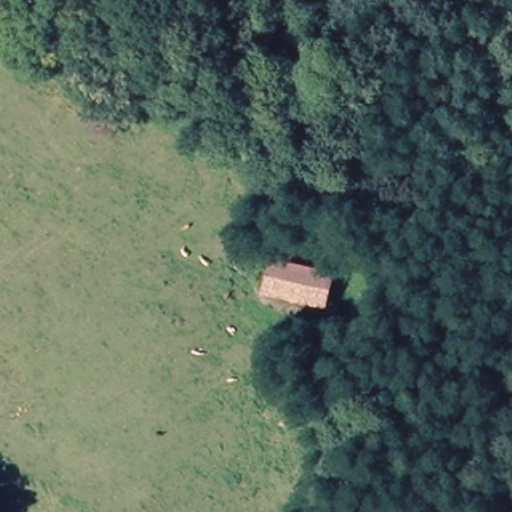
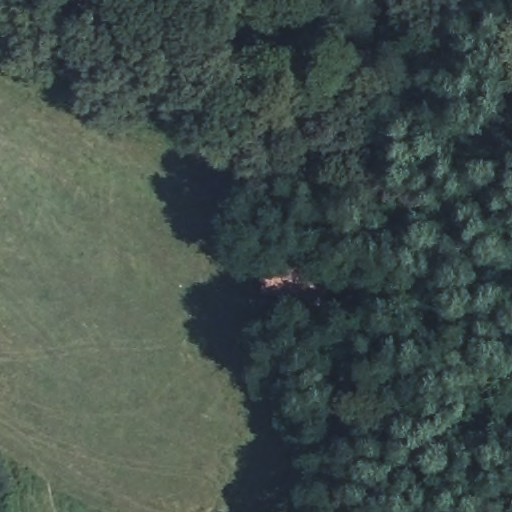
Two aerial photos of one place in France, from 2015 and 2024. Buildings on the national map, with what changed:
unchanged [(271,291),(276,260),(339,276),(331,307),(271,291)]

